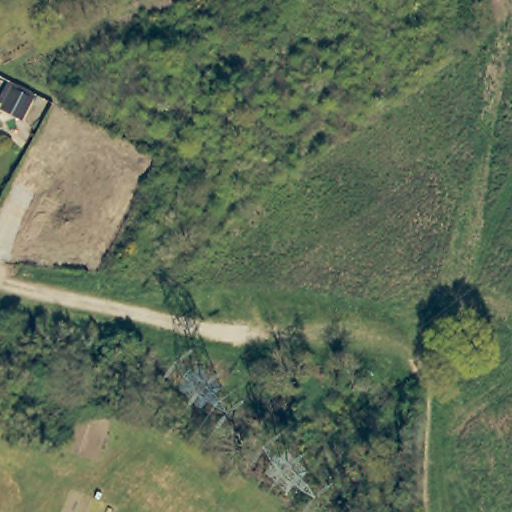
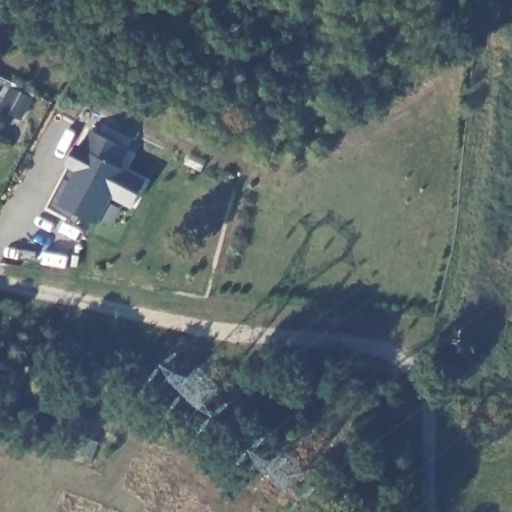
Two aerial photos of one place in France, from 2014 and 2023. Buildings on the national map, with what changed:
new [(81,147),(90,129),(129,149),(119,168),(146,181),(131,210),(111,201),(98,225),(74,214),(71,220),(48,209),(68,168),(67,168),(64,167),(76,144),(81,147)]

